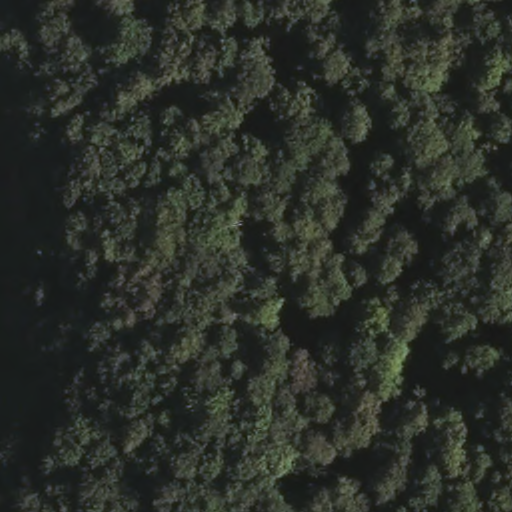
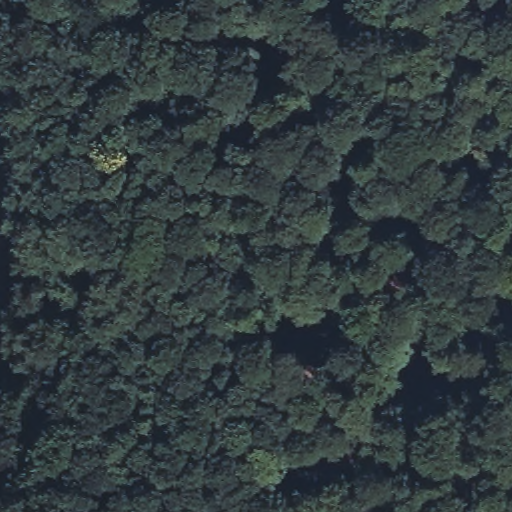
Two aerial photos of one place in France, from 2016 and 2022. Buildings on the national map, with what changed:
[]

